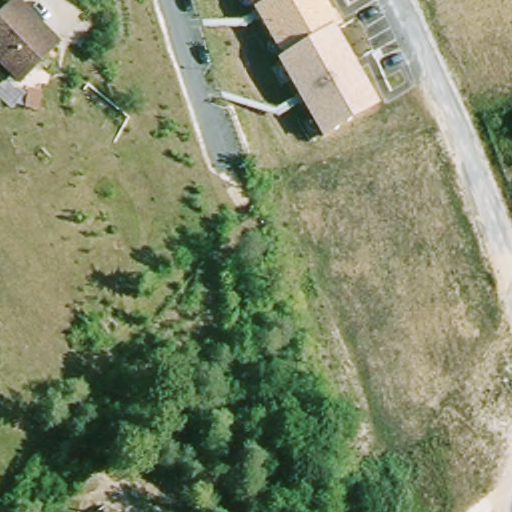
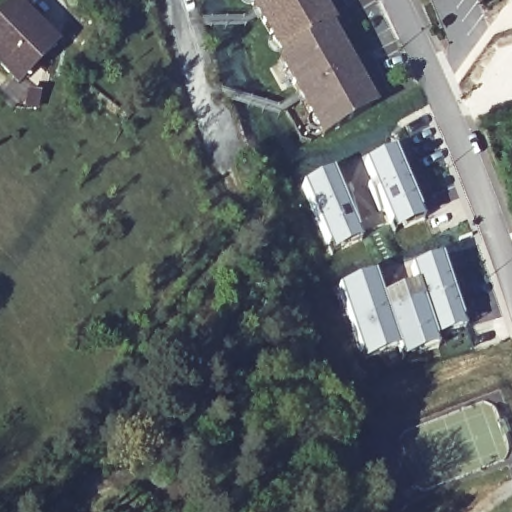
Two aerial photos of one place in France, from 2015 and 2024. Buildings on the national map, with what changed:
unchanged [(30,80),(0,46),(0,26),(28,0),(69,45),(30,80)]
unchanged [(250,0),(265,0),(254,6),(250,0)]
unchanged [(332,26),(282,55),(254,6),(265,0),(322,0),(336,24),(332,26)]
unchanged [(377,102),(320,134),(277,58),(282,55),(332,26),(377,102)]
new [(394,149),(426,219),(395,233),(367,186),(371,185),(362,163),(394,149)]
new [(335,169),(363,238),(331,252),(300,184),(335,169)]
new [(442,255),(467,328),(437,339),(425,303),(417,283),(411,267),(442,255)]
new [(376,272),(383,295),(400,348),(365,361),(338,286),(376,272)]
new [(417,283),(425,303),(437,339),(439,345),(404,358),(400,348),(383,295),(417,283)]

